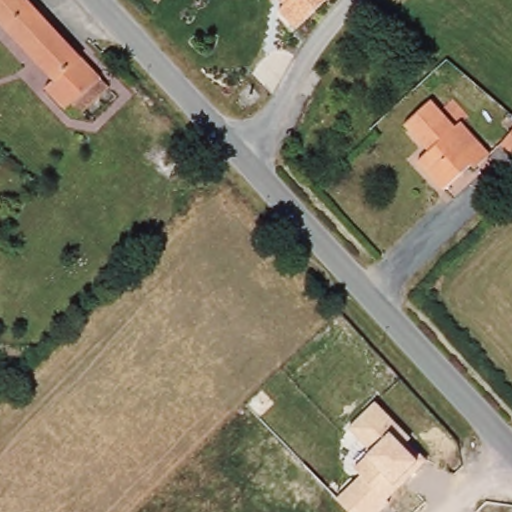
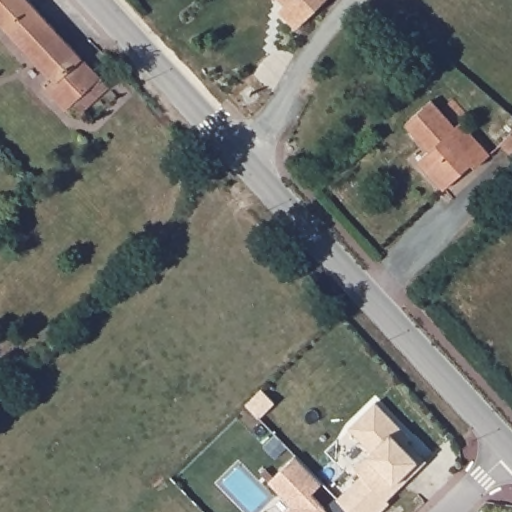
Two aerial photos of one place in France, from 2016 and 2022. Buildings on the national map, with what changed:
unchanged [(78,116),(45,82),(52,75),(0,16),(0,0),(37,0),(111,82),(78,116)]
unchanged [(326,3),(298,32),(295,28),(280,13),(290,3),(287,0),(329,0),(326,3)]
unchanged [(499,159),(484,172),(481,169),(455,193),(428,165),(438,156),(412,128),(437,106),(447,116),(463,132),(470,127),(499,159)]
unchanged [(505,141),(512,134),(512,149),(505,141)]
unchanged [(361,475),(353,469),(367,455),(372,450),(350,427),(377,402),(428,458),(387,497),(391,502),(380,512),(350,512),(337,498),(361,475)]
new [(312,494),(325,507),(336,496),(337,498),(350,512),(287,512),(292,507),(267,482),(295,455),(322,483),(312,494)]

